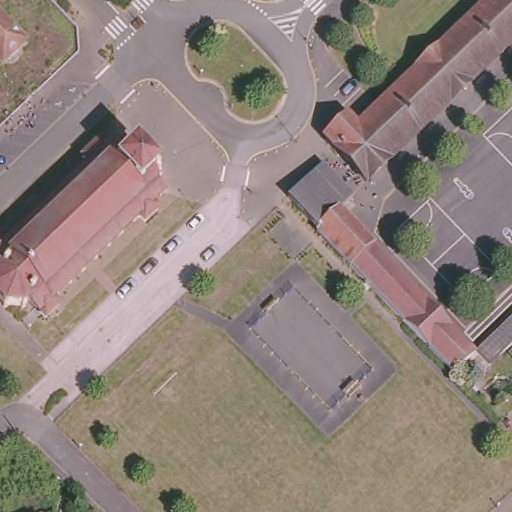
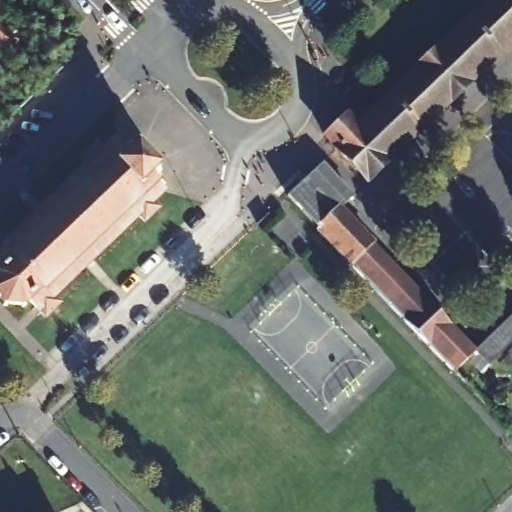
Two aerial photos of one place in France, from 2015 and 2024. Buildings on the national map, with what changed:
unchanged [(347,122),(357,131),(419,72),(415,67),(434,51),(438,54),(493,0),(512,0),(512,38),(467,82),(470,86),(451,106),(447,102),(362,182),(335,155),(324,144),(347,122)]
unchanged [(3,59),(0,56),(0,16),(22,39),(3,59)]
unchanged [(157,192),(149,200),(153,205),(140,217),(134,211),(50,292),(56,298),(40,312),(24,296),(15,305),(0,304),(0,237),(82,157),(77,151),(91,137),(97,144),(105,137),(116,147),(124,141),(125,139),(144,159),(156,171),(145,180),(157,192)]
unchanged [(324,156),(354,188),(340,202),(395,257),(372,280),(350,255),(289,191),(324,156)]
unchanged [(395,257),(477,343),(454,367),(372,280),(395,257)]
unchanged [(512,309),(512,332),(489,354),(477,343),(512,309)]

